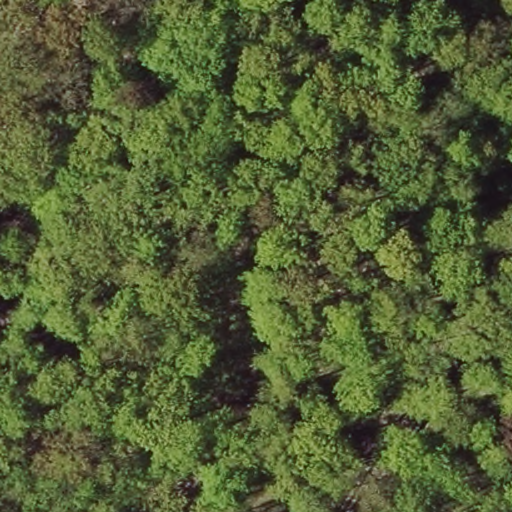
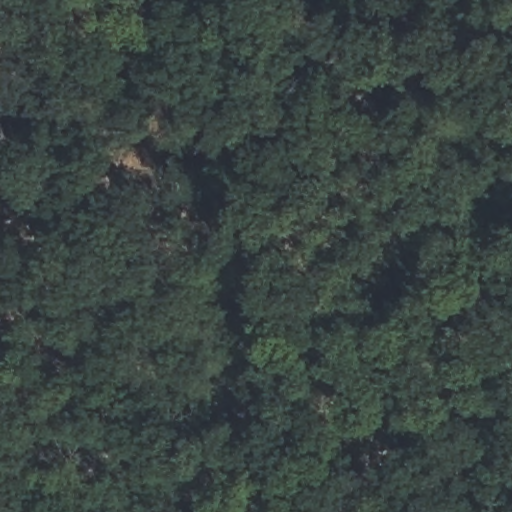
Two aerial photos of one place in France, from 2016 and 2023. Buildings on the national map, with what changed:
[]

